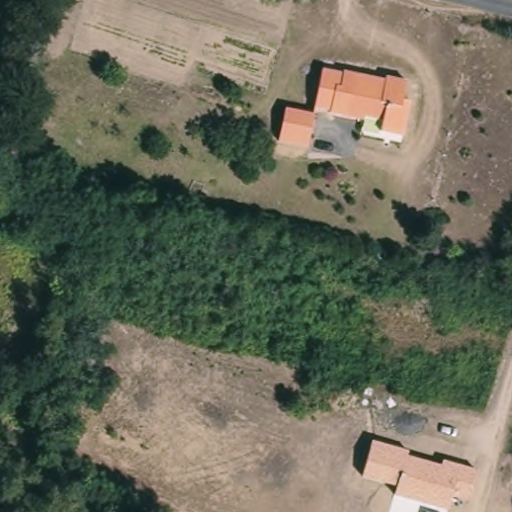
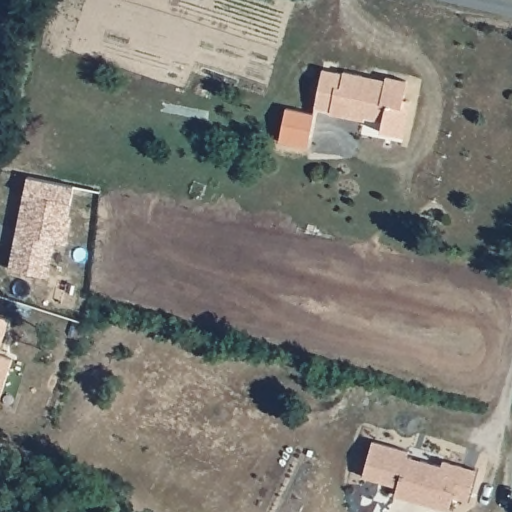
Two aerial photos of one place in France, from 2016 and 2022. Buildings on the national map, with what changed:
unchanged [(411,82),(407,100),(414,101),(407,137),(385,132),(387,121),(369,118),(367,122),(334,114),(335,110),(319,108),(327,71),(347,75),(348,72),(366,76),(388,81),(390,77),(411,82)]
unchanged [(280,150),(282,140),(288,116),(316,123),(311,146),(309,156),(280,150)]
new [(27,178),(74,187),(67,219),(70,220),(66,244),(55,242),(49,277),(10,269),(27,178)]
new [(9,318),(0,345),(0,315),(9,318)]
new [(0,386),(0,354),(12,358),(3,387),(0,396),(0,386)]
unchanged [(408,455),(440,463),(442,459),(477,469),(469,502),(451,497),(447,509),(393,495),(396,485),(362,476),(371,439),(408,449),(408,455)]

